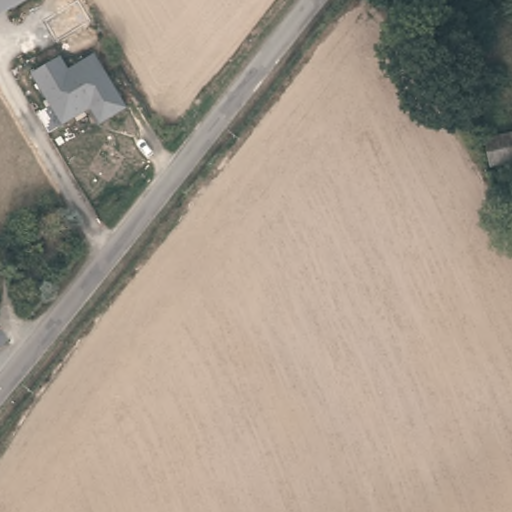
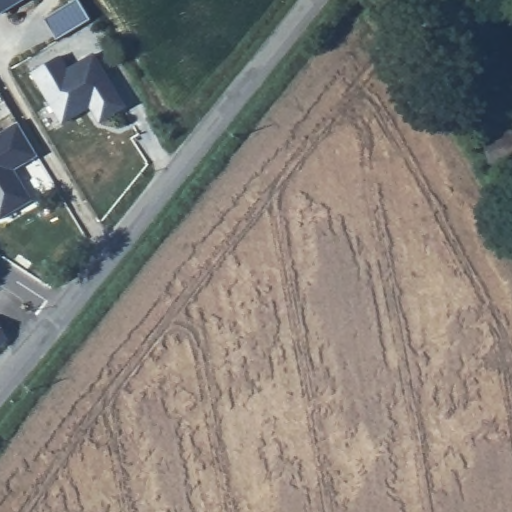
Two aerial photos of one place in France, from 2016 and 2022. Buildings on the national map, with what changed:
unchanged [(26,0),(0,15),(0,0),(26,0)]
unchanged [(77,0),(90,20),(57,39),(44,20),(76,0),(77,0)]
unchanged [(90,109),(60,125),(30,73),(61,56),(70,70),(95,55),(127,107),(100,124),(90,109)]
unchanged [(512,113),(512,122),(511,113),(512,113)]
new [(14,173),(31,201),(0,221),(0,134),(17,124),(37,157),(14,173)]
unchanged [(485,164),(477,166),(471,152),(512,135),(512,166),(490,175),(485,164)]
unchanged [(506,176),(512,193),(512,226),(509,229),(486,182),(506,176)]
unchanged [(0,350),(0,333),(7,344),(4,348),(0,350)]

